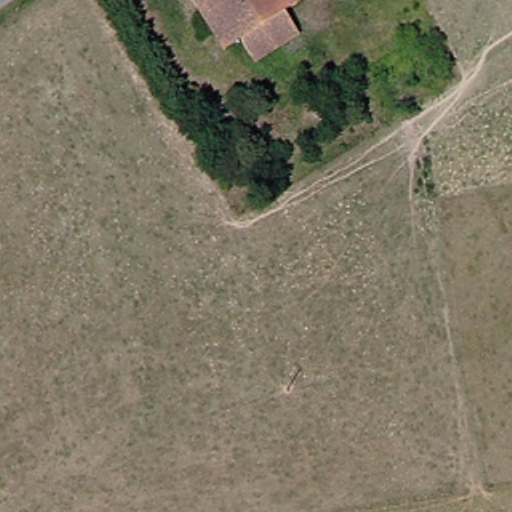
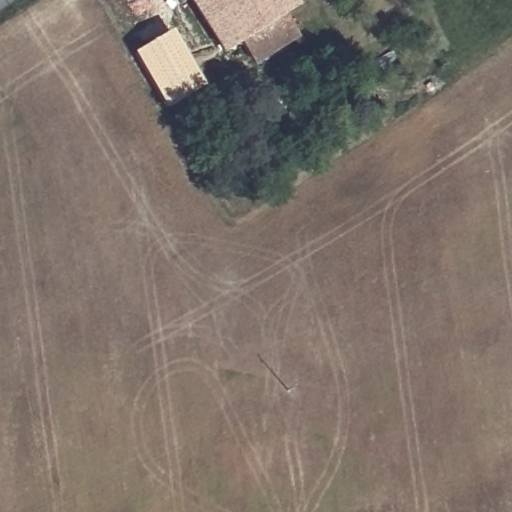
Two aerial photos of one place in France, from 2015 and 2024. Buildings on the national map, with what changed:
unchanged [(291,3),(278,12),(233,41),(219,50),(187,0),(290,0),(291,3)]
unchanged [(278,12),(294,37),(249,67),(233,41),(278,12)]
new [(206,86),(165,109),(132,52),(172,30),(206,86)]

